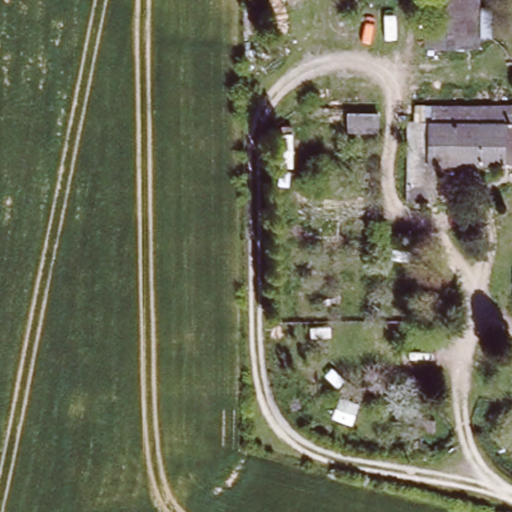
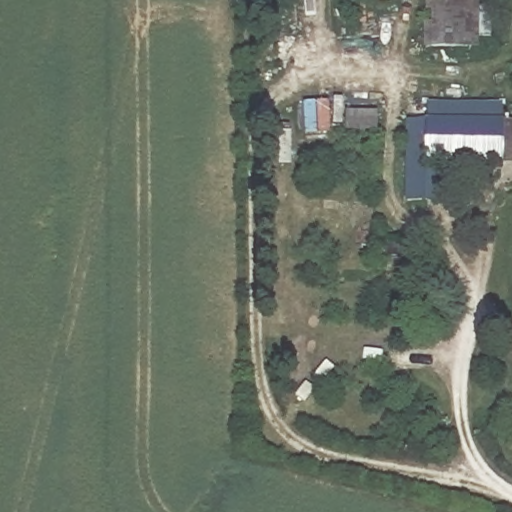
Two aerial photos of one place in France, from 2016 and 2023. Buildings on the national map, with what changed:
unchanged [(441,0),(477,0),(476,49),(440,42),(441,0)]
unchanged [(403,124),(403,121),(410,121),(410,106),(423,107),(471,107),(510,108),(510,122),(512,122),(512,165),(495,165),(468,165),(468,173),(451,173),(431,173),(431,177),(431,200),(403,200),(403,177),(403,124)]
unchanged [(377,119),(377,139),(312,139),(312,118),(377,119)]
unchanged [(446,389),(446,416),(427,416),(427,389),(446,389)]

